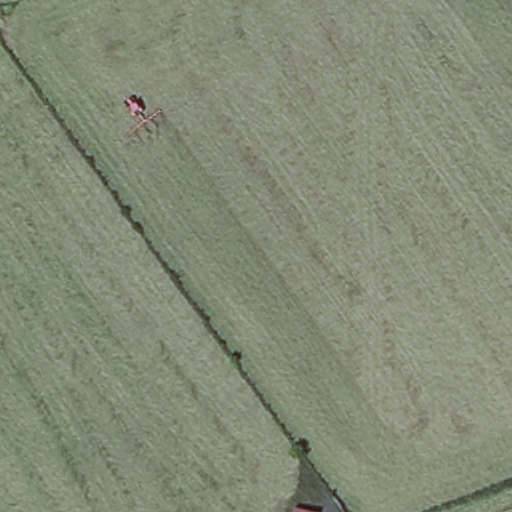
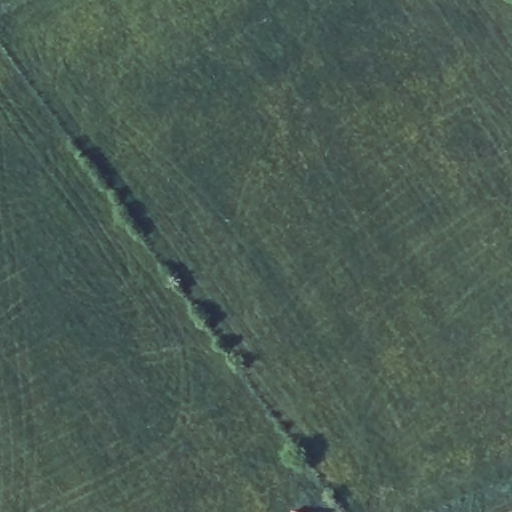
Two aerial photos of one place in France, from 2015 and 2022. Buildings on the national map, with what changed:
unchanged [(292,512),(293,507),(311,512),(292,512)]

